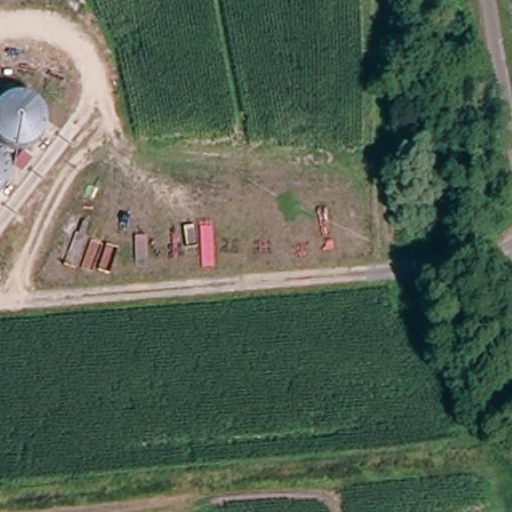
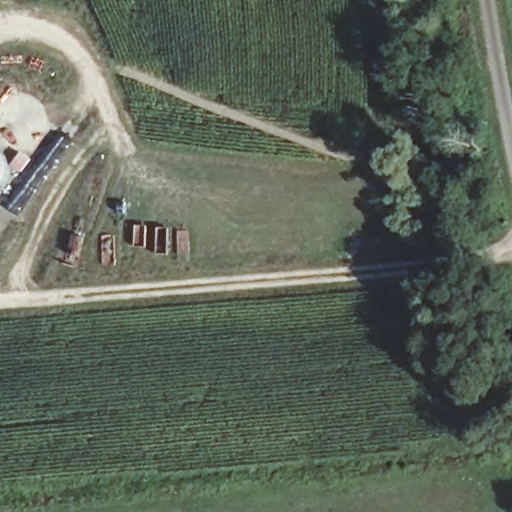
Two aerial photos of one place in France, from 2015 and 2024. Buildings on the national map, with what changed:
unchanged [(20,96),(34,100),(44,111),(46,125),(41,145),(29,149),(16,150),(7,147),(0,142),(0,104),(5,99),(20,96)]
unchanged [(12,170),(11,180),(3,192),(0,193),(0,152),(9,159),(12,170)]

